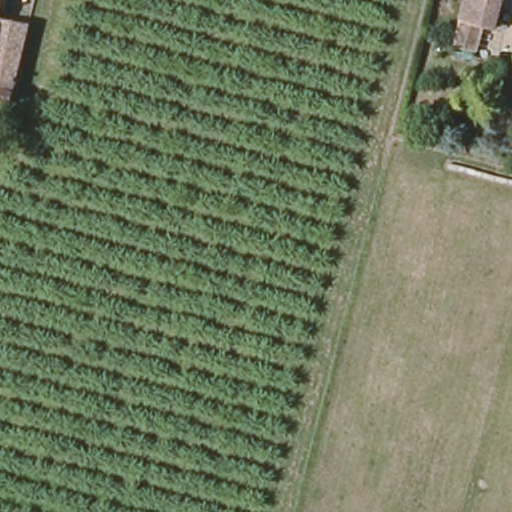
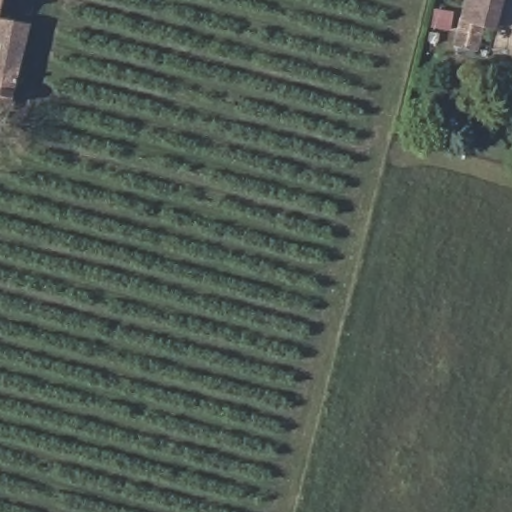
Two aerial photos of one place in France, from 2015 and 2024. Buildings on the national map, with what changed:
unchanged [(0,10),(0,0),(2,0),(0,10)]
unchanged [(497,24),(462,13),(467,0),(504,0),(497,24)]

